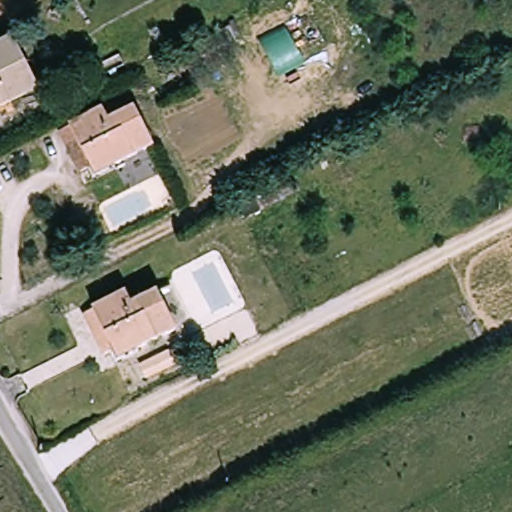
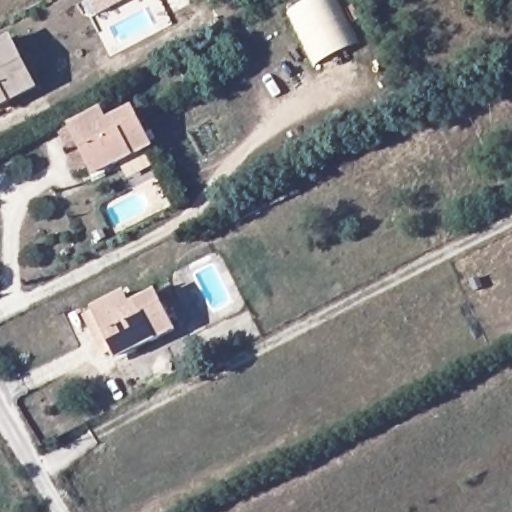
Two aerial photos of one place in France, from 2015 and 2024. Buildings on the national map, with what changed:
new [(89,0),(128,0),(98,16),(89,0)]
new [(314,67),(287,12),(313,0),(334,0),(357,46),(314,67)]
unchanged [(20,37),(46,86),(0,109),(0,46),(20,37)]
unchanged [(157,147),(98,177),(70,127),(103,110),(110,122),(136,107),(157,147)]
unchanged [(182,327),(126,357),(101,308),(134,291),(142,305),(164,293),(182,327)]

